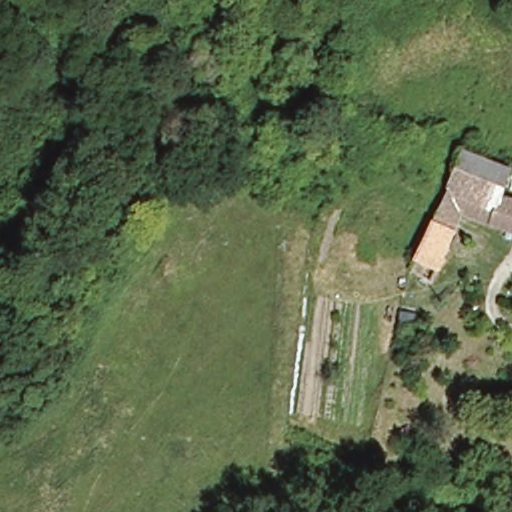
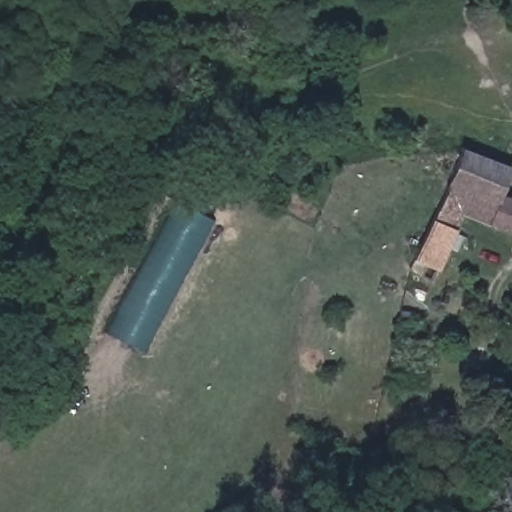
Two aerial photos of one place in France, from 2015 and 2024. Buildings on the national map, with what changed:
unchanged [(403,274),(410,261),(430,218),(443,188),(453,145),(506,163),(498,192),(512,197),(512,233),(462,216),(453,233),(438,265),(429,280),(403,274)]
unchanged [(264,176),(264,192),(247,193),(246,177),(264,176)]
new [(140,350),(104,332),(176,200),(212,220),(140,350)]

